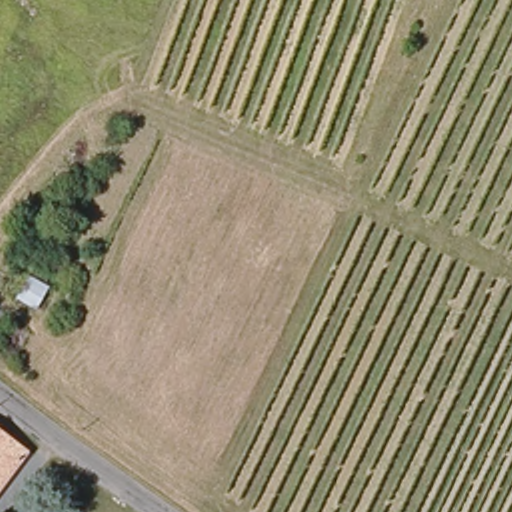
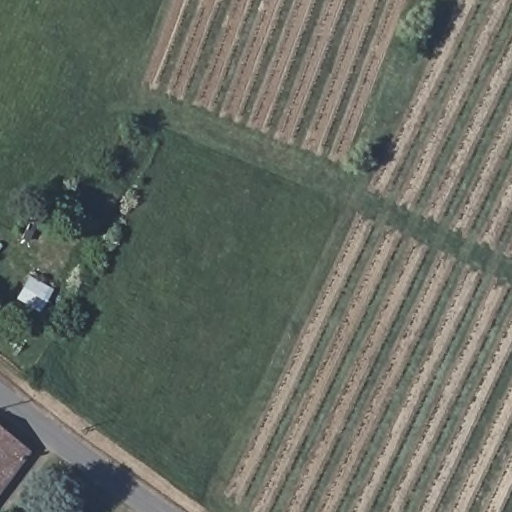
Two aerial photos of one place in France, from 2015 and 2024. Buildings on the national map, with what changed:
unchanged [(34,278),(49,284),(41,305),(25,300),(34,278)]
unchanged [(0,478),(0,436),(20,448),(0,478)]

